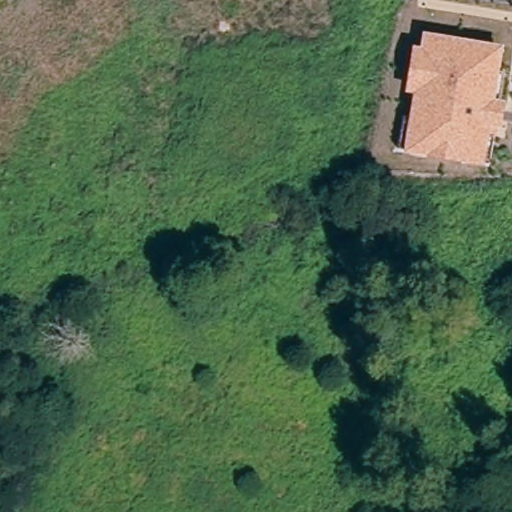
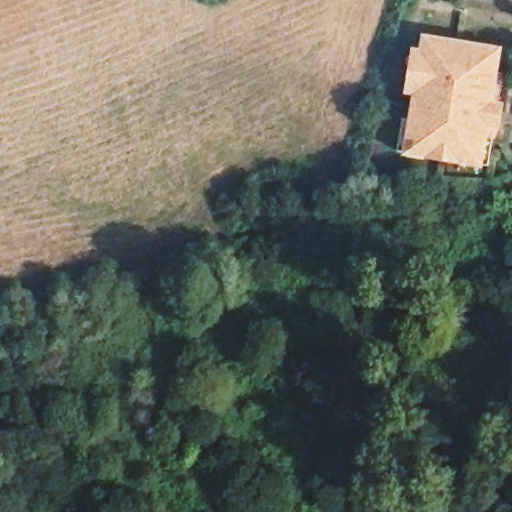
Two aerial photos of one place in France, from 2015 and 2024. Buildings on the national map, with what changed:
unchanged [(502,45),(498,72),(503,74),(500,100),(504,100),(496,137),(492,137),(490,161),(484,160),(483,166),(402,154),(412,94),(404,92),(413,45),(420,46),(423,32),(502,45)]

